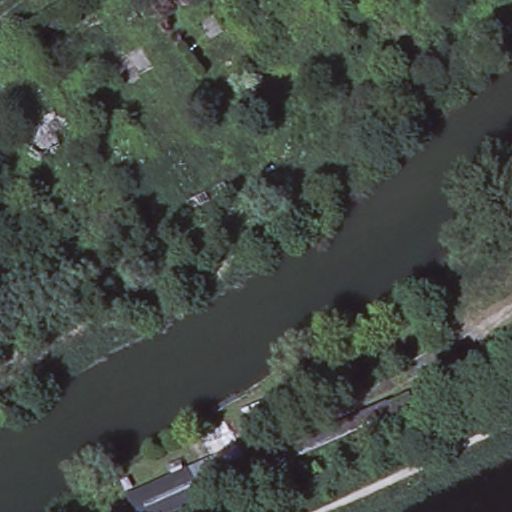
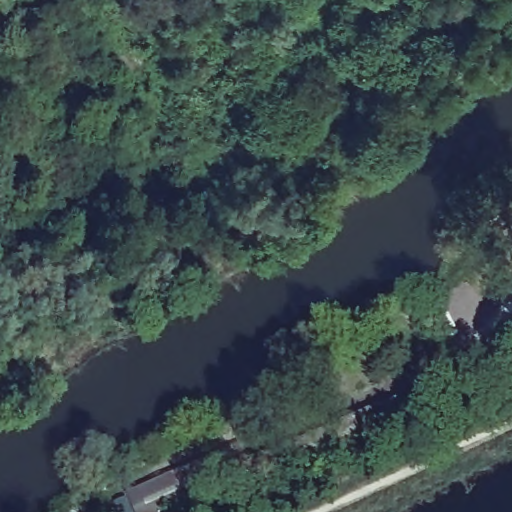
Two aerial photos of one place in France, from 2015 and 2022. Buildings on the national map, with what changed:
unchanged [(71,144),(45,159),(21,126),(47,112),(71,144)]
unchanged [(275,432),(337,404),(342,415),(292,437),(295,447),(348,423),(347,418),(395,397),(395,399),(512,347),(512,361),(288,461),(275,432)]
unchanged [(262,484),(187,512),(137,512),(127,491),(242,442),(262,484)]

